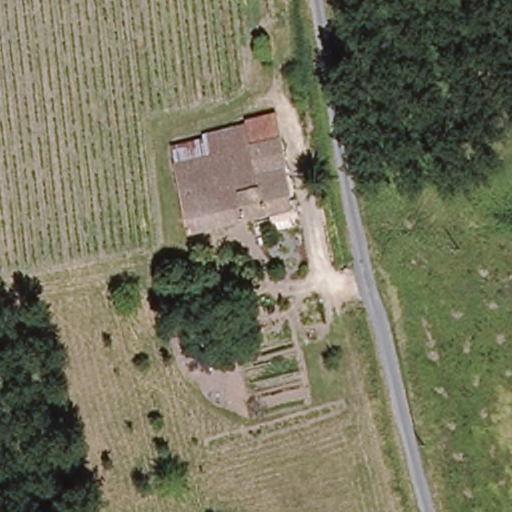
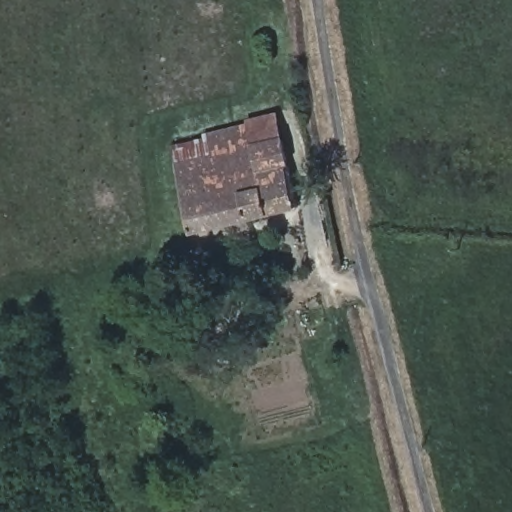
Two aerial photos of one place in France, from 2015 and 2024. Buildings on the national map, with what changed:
unchanged [(191,230),(174,164),(170,144),(248,125),(247,117),(273,110),(279,140),(295,204),(191,230)]
unchanged [(271,306),(264,307),(257,285),(266,283),(271,306)]

